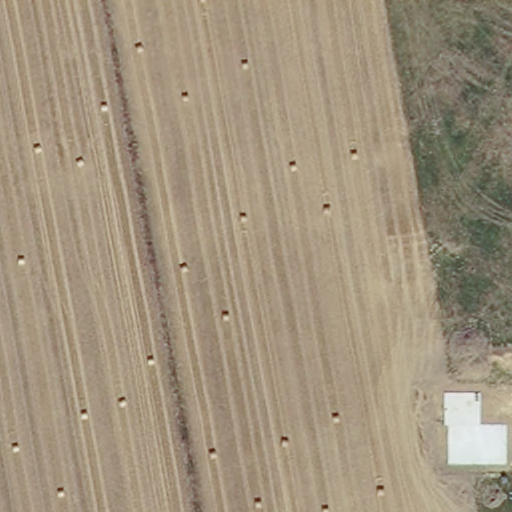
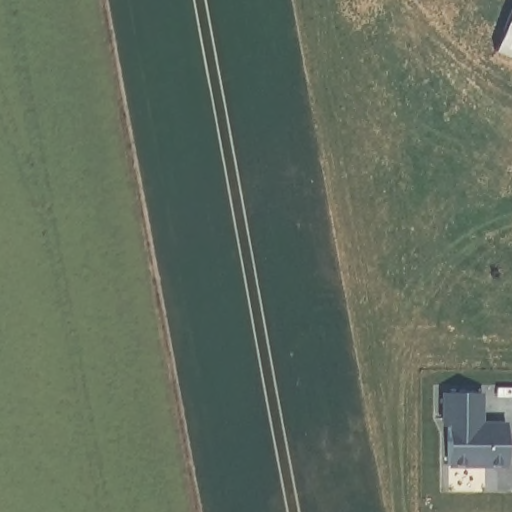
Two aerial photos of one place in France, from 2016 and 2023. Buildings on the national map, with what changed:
unchanged [(498,59),(512,22),(512,64),(498,59)]
new [(481,395),(482,426),(509,426),(509,467),(449,468),(449,428),(445,428),(444,395),(481,395)]

